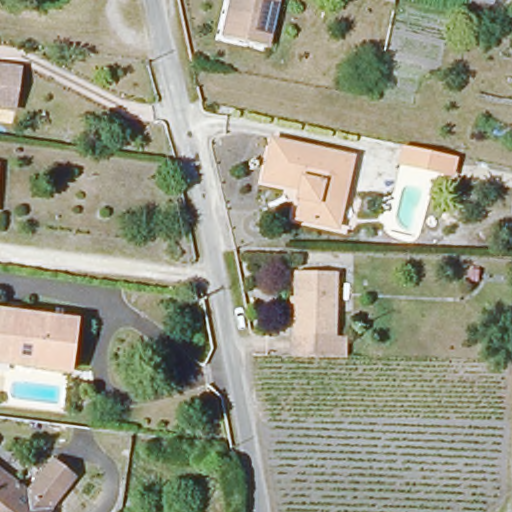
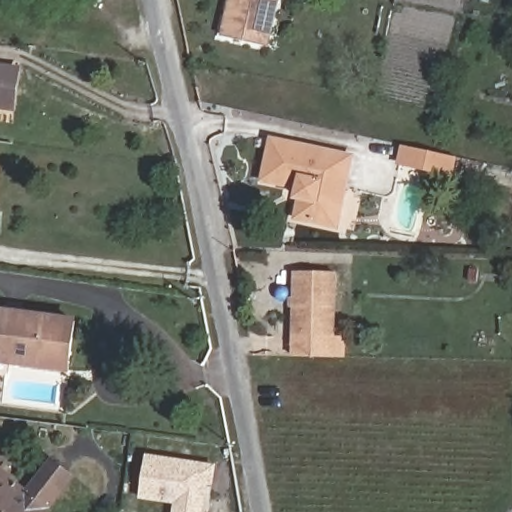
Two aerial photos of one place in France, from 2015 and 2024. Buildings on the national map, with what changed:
unchanged [(228,26),(233,0),(277,0),(270,35),(267,47),(226,37),(228,26)]
unchanged [(10,109),(0,107),(0,65),(16,66),(10,109)]
unchanged [(355,159),(337,228),(301,218),(306,198),(302,197),(305,187),(266,176),(276,136),(355,159)]
new [(451,177),(436,174),(400,165),(403,145),(439,156),(454,160),(451,177)]
unchanged [(293,263),(333,265),(332,312),(292,311),(293,263)]
unchanged [(292,311),(332,312),(331,323),(340,325),(339,346),(290,345),(292,311)]
unchanged [(67,374),(0,365),(0,314),(72,323),(67,374)]
new [(140,500),(147,454),(216,465),(210,512),(172,512),(174,505),(140,500)]
unchanged [(60,459),(81,476),(50,512),(0,512),(0,466),(31,492),(60,459)]

